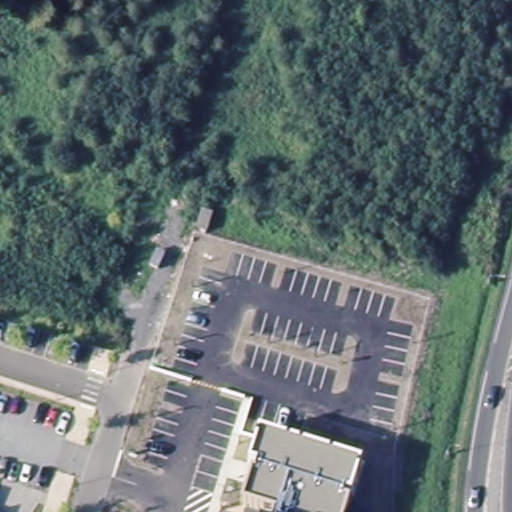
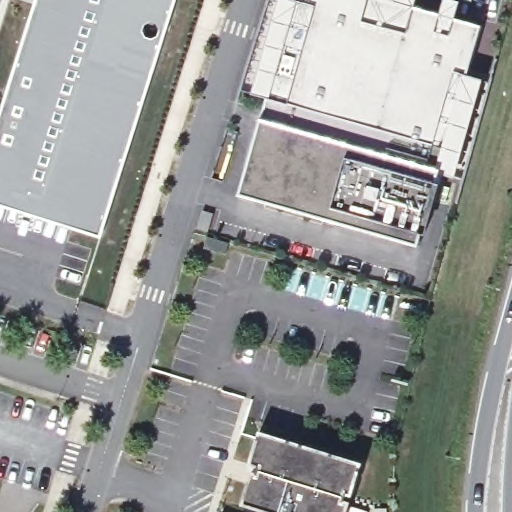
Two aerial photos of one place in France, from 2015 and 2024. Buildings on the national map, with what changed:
new [(176,0),(107,219),(0,186),(0,112),(34,4),(35,0),(176,0)]
new [(293,0),(392,0),(415,6),(441,14),(444,0),(457,0),(461,1),(456,18),(478,25),(438,168),(435,180),(438,182),(425,231),(420,230),(416,243),(240,191),(260,118),(267,91),(293,0)]
new [(293,0),(267,91),(252,87),(277,0),(293,0)]
new [(392,0),(416,0),(415,6),(392,0)]
new [(101,237),(0,205),(0,186),(107,219),(101,237)]
new [(225,258),(218,256),(204,252),(209,235),(223,240),(230,241),(225,258)]
unchanged [(244,502),(252,473),(255,473),(256,465),(251,464),(260,431),(362,461),(352,496),(347,495),(344,500),(350,501),(346,512),(274,512),(244,502)]

